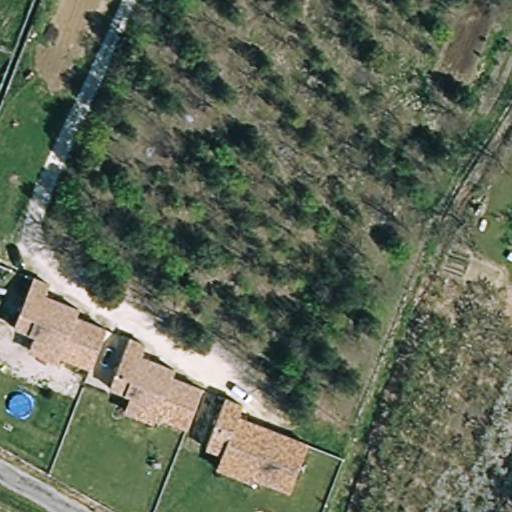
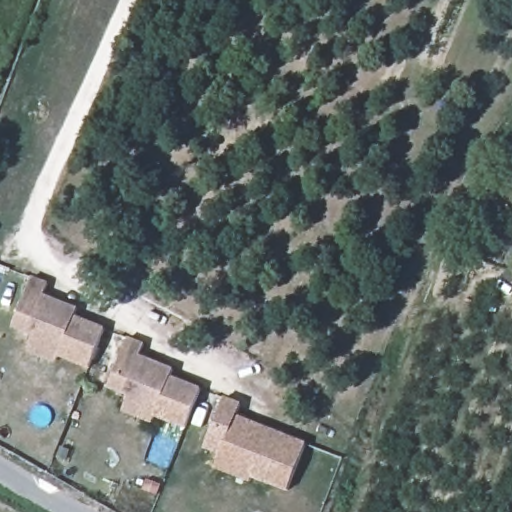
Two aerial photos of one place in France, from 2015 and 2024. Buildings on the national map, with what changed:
unchanged [(35,276),(51,282),(47,294),(80,308),(77,315),(108,327),(93,364),(63,353),(67,342),(17,322),(35,276)]
unchanged [(125,341),(142,348),(137,360),(172,373),(168,380),(199,392),(185,429),(152,418),(157,408),(107,388),(125,341)]
unchanged [(245,403),(240,414),(307,441),(288,488),(251,473),(255,464),(209,445),(228,397),(245,403)]

